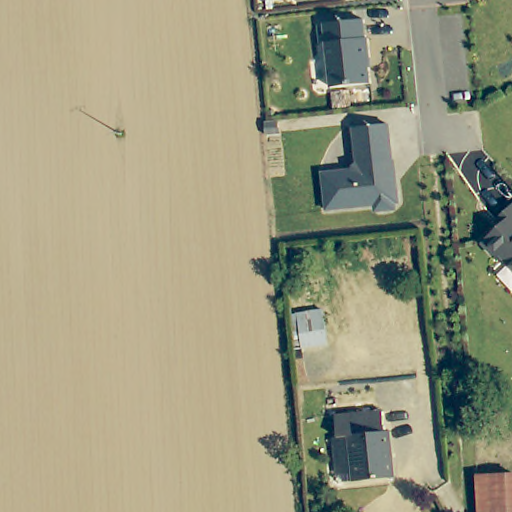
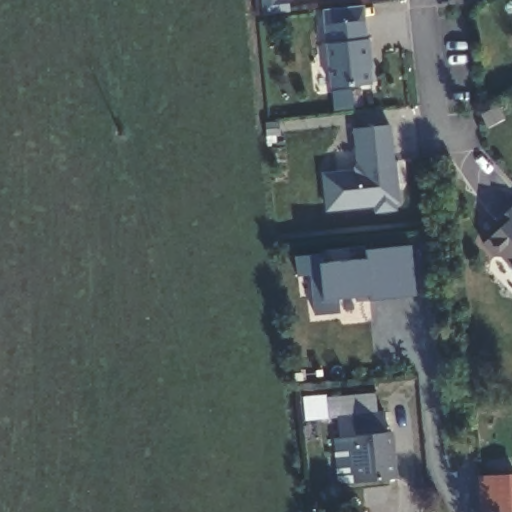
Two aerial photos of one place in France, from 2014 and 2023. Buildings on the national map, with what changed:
unchanged [(362,15),(364,34),(366,34),(368,52),(366,52),(368,79),(328,82),(322,19),(362,15)]
new [(279,121),(280,134),(264,135),(263,124),(279,121)]
unchanged [(389,158),(386,158),(389,182),(393,181),(395,200),(391,200),(391,202),(387,207),(375,209),(370,205),(370,202),(323,206),(319,170),(347,167),(353,160),(350,125),(385,121),(389,158)]
unchanged [(495,254),(482,240),(501,223),(496,217),(512,203),(512,265),(502,254),(495,254)]
new [(368,300),(365,294),(338,297),(340,311),(313,314),(309,273),(295,274),(293,255),(325,252),(326,260),(364,256),(363,247),(409,244),(415,295),(368,300)]
unchanged [(349,434),(343,435),(341,413),(385,409),(388,430),(392,430),(396,475),(354,478),(349,434)]
unchanged [(506,480),(512,479),(512,512),(486,512),(485,481),(506,480)]

